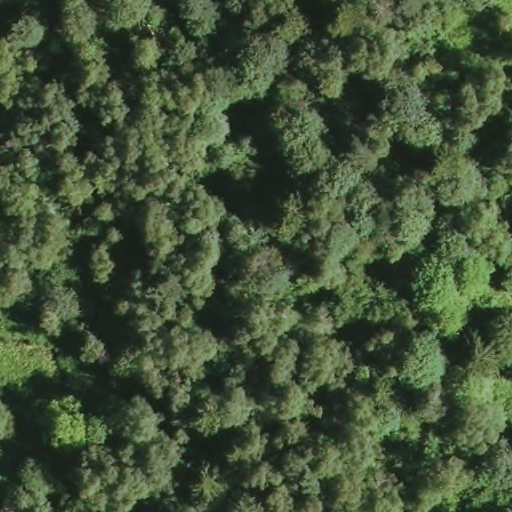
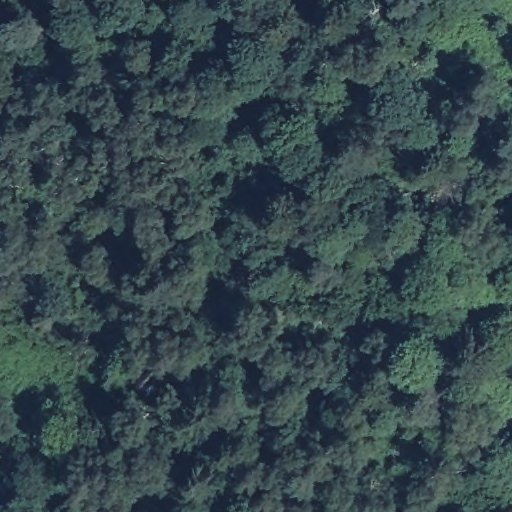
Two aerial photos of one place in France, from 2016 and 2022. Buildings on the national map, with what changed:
[]

